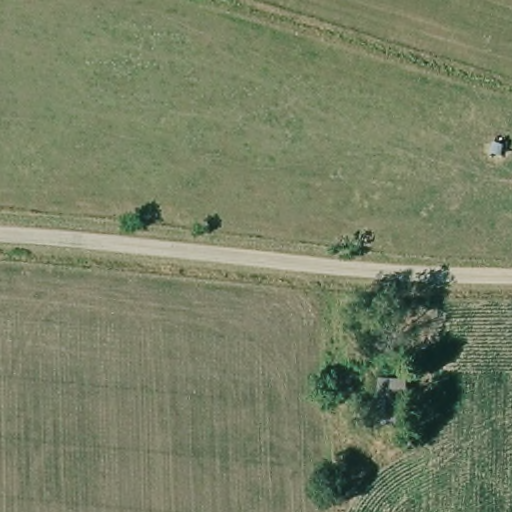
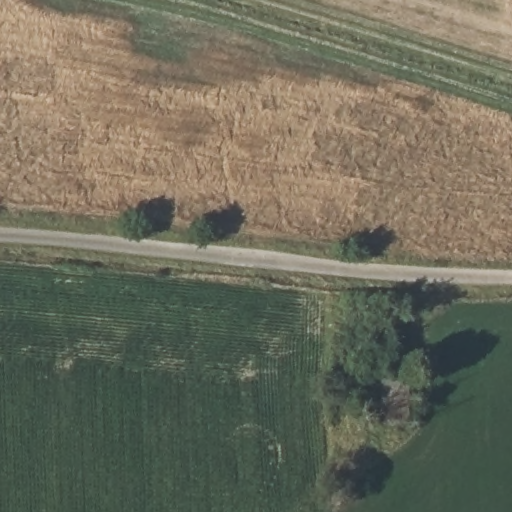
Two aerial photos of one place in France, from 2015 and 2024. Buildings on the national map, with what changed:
unchanged [(380,381),(404,379),(405,416),(380,417),(380,381)]

